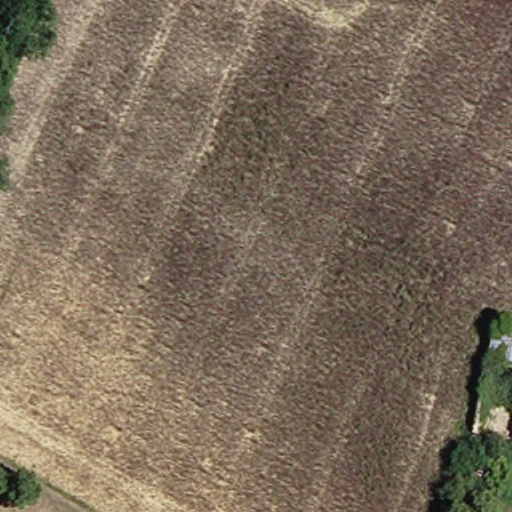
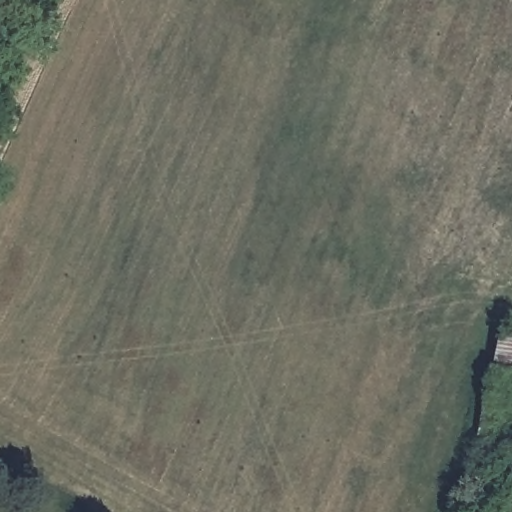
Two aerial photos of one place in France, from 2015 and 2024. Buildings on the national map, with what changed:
unchanged [(493,372),(498,344),(512,346),(512,375),(493,372)]

